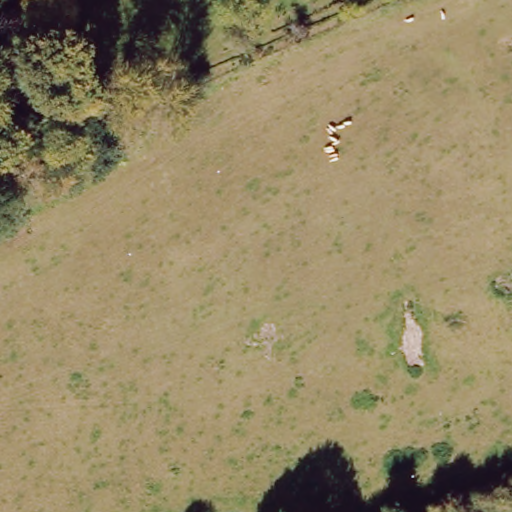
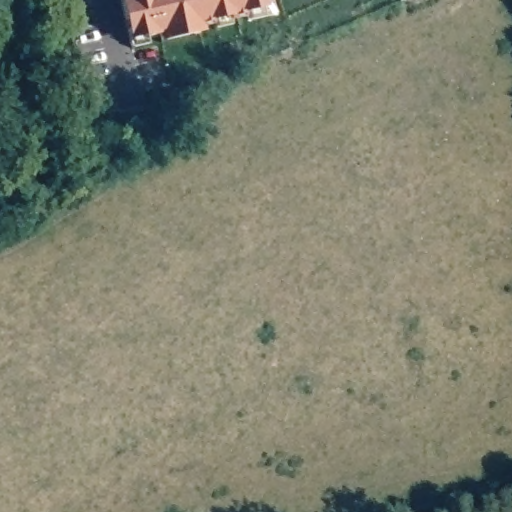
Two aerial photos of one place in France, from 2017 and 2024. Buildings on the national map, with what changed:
new [(148,39),(129,43),(119,0),(261,0),(264,12),(245,16),(245,18),(230,21),(228,20),(213,24),(213,25),(196,28),(202,27),(203,35),(161,44),(160,37),(148,40),(148,39)]
new [(245,16),(264,12),(261,0),(271,0),(275,19),(247,25),(245,16)]
new [(213,24),(228,20),(231,28),(215,32),(213,24)]
new [(130,43),(146,39),(148,48),(132,51),(130,43)]

